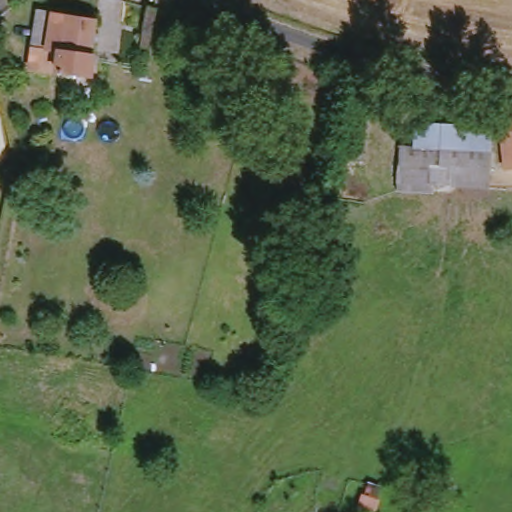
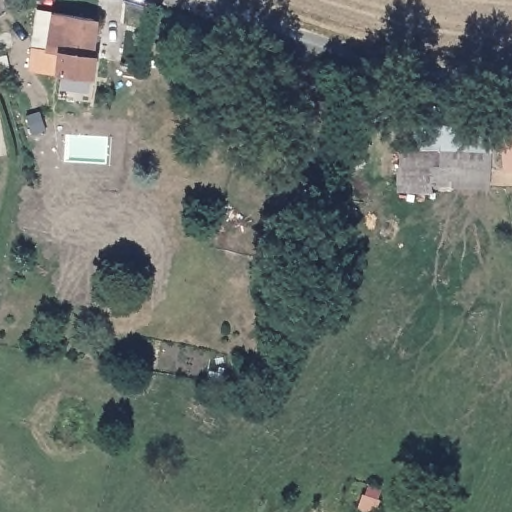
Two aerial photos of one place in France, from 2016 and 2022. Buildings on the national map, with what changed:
unchanged [(69,96),(71,84),(54,81),(56,72),(24,67),(32,6),(92,15),(86,50),(91,51),(87,76),(83,99),(69,96)]
unchanged [(377,97),(358,171),(343,166),(350,139),(360,96),(377,97)]
unchanged [(413,121),(489,124),(487,155),(411,152),(413,121)]
unchanged [(506,185),(498,124),(512,123),(512,184),(506,185)]
unchanged [(447,191),(425,191),(425,194),(398,194),(398,152),(411,152),(487,155),(486,175),(485,191),(447,191)]

